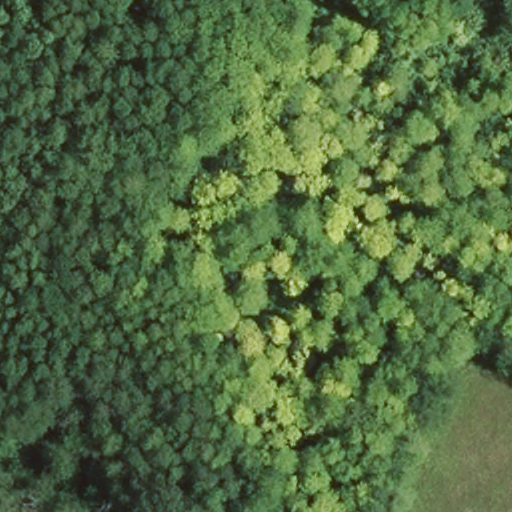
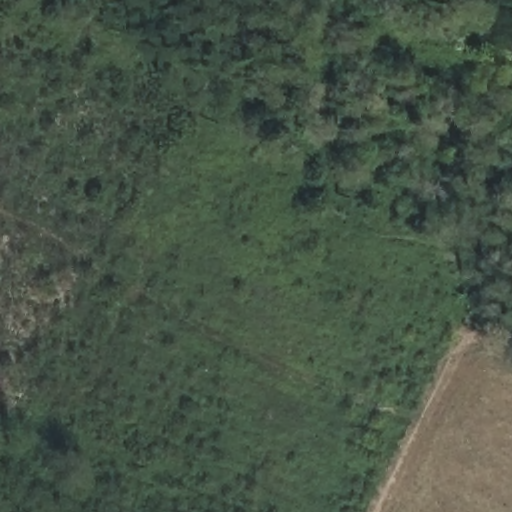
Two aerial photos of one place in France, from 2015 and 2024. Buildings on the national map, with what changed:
[]

